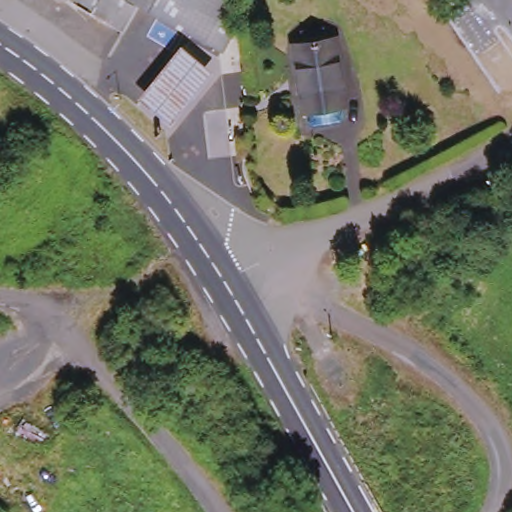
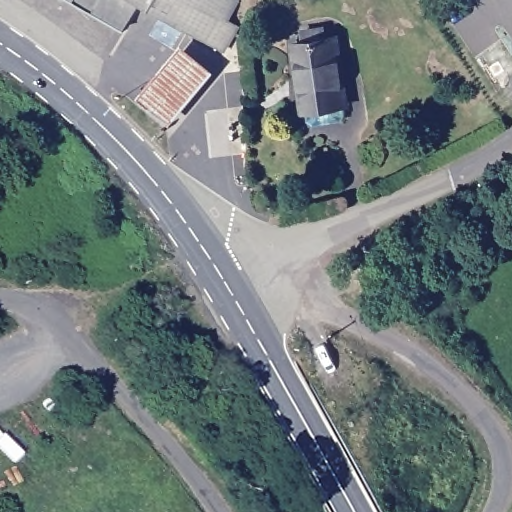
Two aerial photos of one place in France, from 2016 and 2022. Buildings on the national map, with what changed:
unchanged [(124,36),(64,0),(122,0),(139,11),(124,36)]
unchanged [(133,0),(237,0),(227,20),(238,27),(223,52),(133,0)]
unchanged [(307,124),(304,109),(292,44),(302,43),(301,32),(320,29),(322,39),(331,37),(342,101),(345,117),(307,124)]
unchanged [(182,46),(213,75),(171,127),(137,101),(182,46)]

